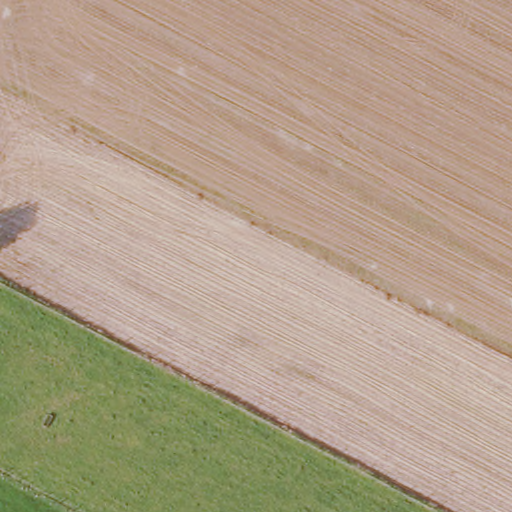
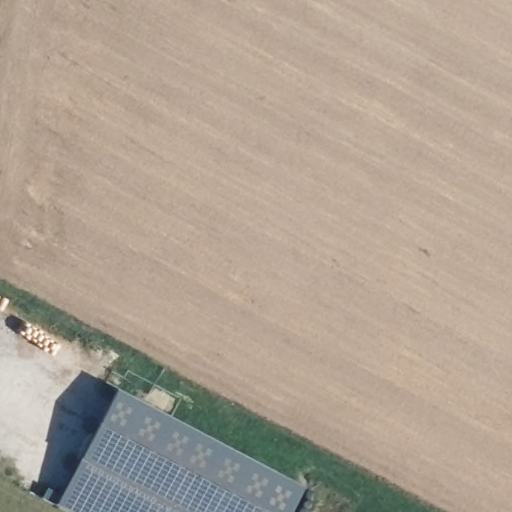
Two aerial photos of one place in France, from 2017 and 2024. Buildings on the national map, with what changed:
new [(55,504),(115,394),(280,484),(282,480),(285,482),(284,485),(297,492),(295,495),(292,494),(292,496),(294,498),(286,512),(71,512),(55,504)]

